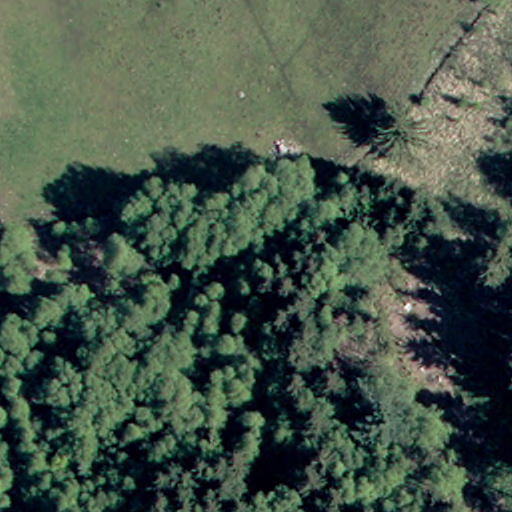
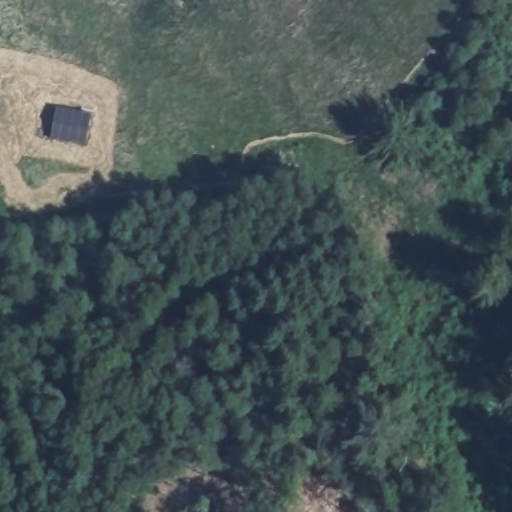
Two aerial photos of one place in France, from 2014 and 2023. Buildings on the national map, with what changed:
new [(57,107),(93,113),(88,144),(52,138),(57,107)]

